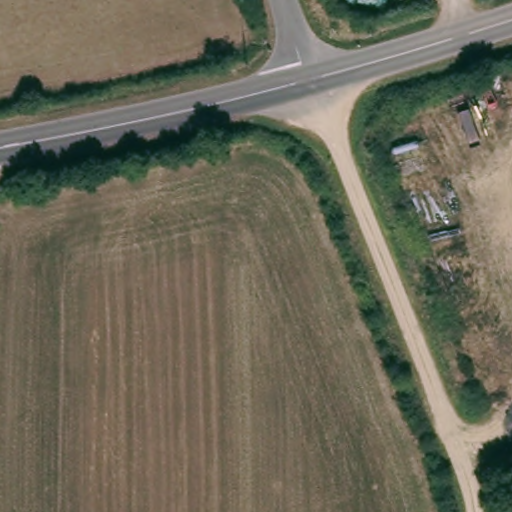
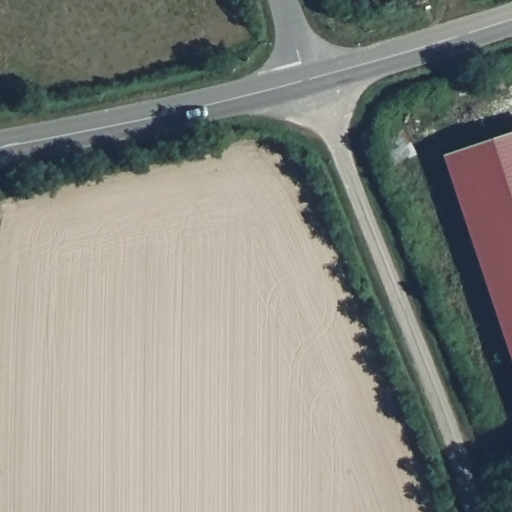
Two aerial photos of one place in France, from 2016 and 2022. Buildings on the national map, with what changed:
new [(512,133),(512,365),(442,156),(512,133)]

